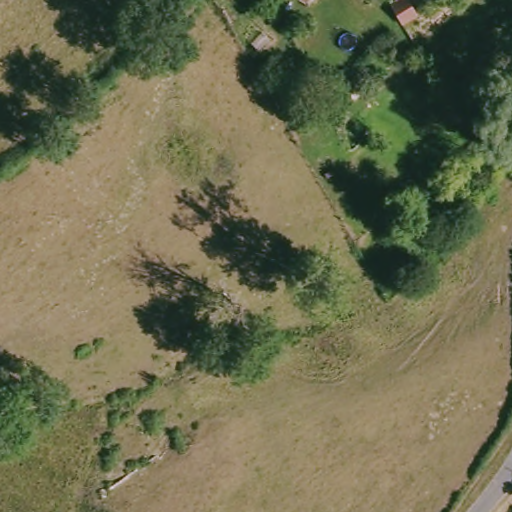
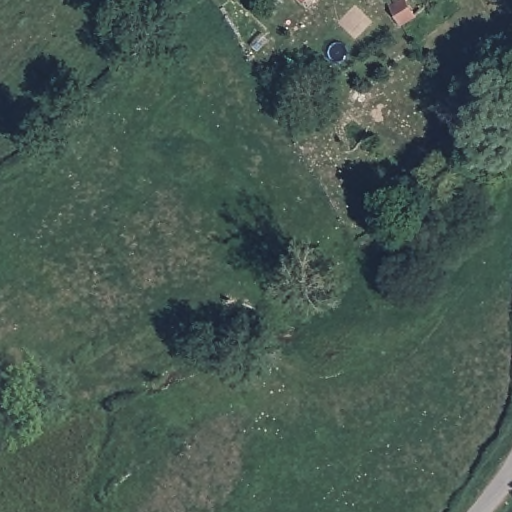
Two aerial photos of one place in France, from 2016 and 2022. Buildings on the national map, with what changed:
unchanged [(399,8),(411,0),(423,20),(410,30),(399,8)]

